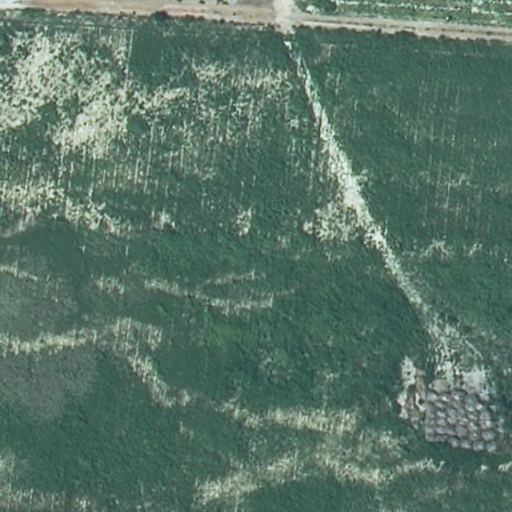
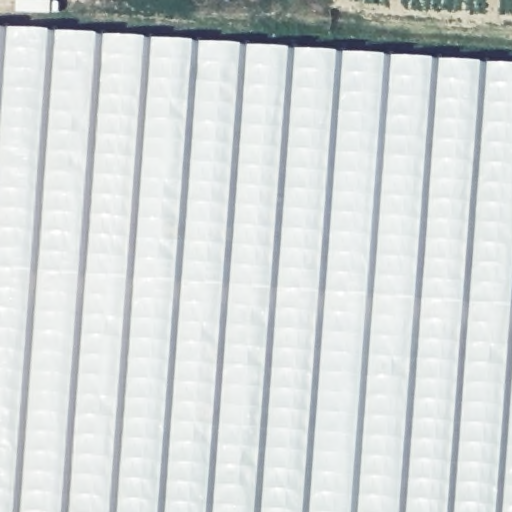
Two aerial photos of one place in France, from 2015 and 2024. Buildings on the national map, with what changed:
new [(0,512),(0,29),(512,66),(512,512),(0,512)]

